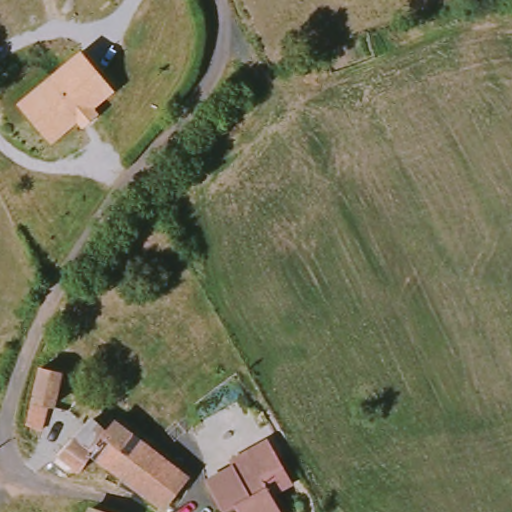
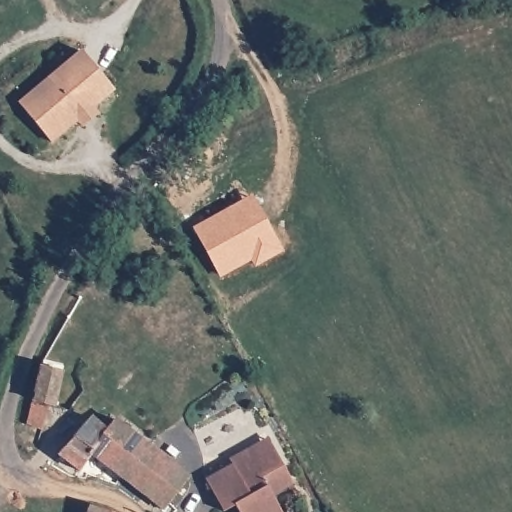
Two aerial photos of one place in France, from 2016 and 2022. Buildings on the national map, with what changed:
unchanged [(114,90),(54,144),(28,115),(20,106),(51,79),(81,52),(114,90)]
new [(254,268),(251,261),(220,277),(193,228),(253,195),(283,251),(254,268)]
unchanged [(63,369),(54,404),(44,403),(37,426),(23,422),(38,362),(63,369)]
unchanged [(91,413),(106,424),(113,414),(188,473),(161,509),(102,481),(69,467),(55,454),(91,413)]
unchanged [(292,484),(271,494),(279,512),(239,512),(236,505),(222,512),(221,512),(204,477),(231,464),(229,459),(268,439),(292,484)]
unchanged [(112,512),(85,512),(88,504),(112,512)]

